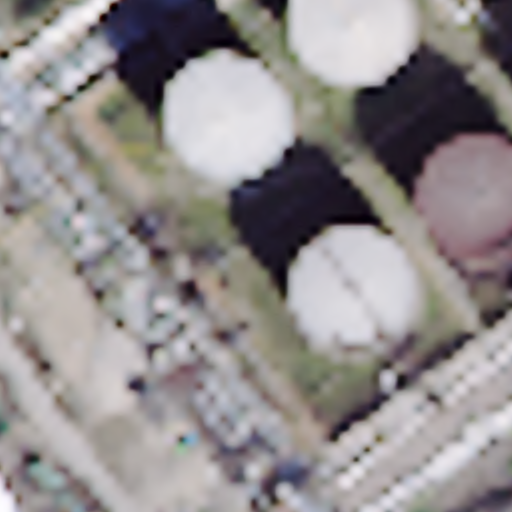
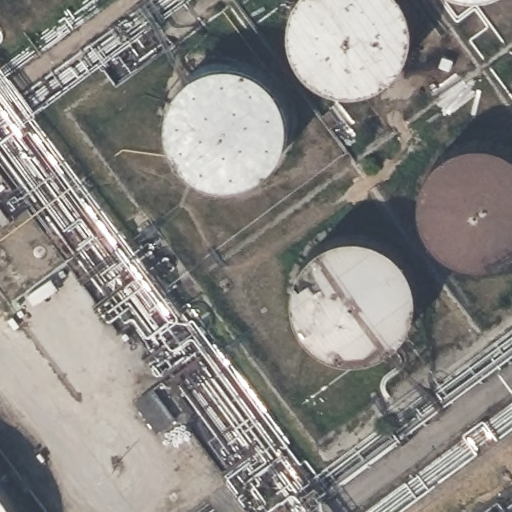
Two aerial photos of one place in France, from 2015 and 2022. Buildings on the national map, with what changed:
unchanged [(156,430),(132,399),(147,388),(171,419),(156,430)]

